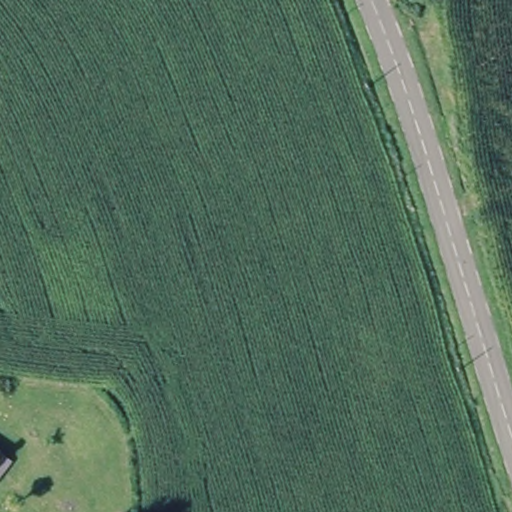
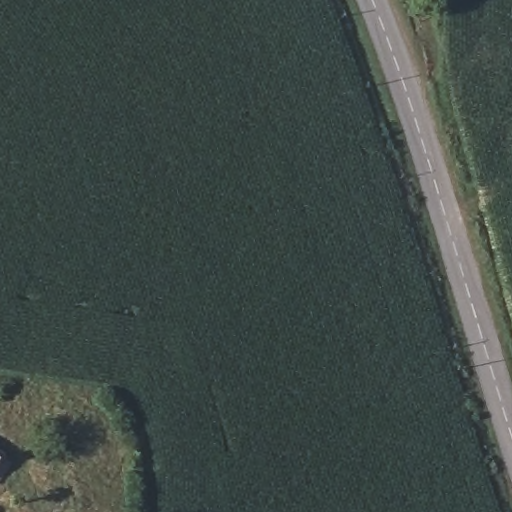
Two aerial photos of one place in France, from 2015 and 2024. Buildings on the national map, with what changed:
unchanged [(0,473),(0,452),(10,459),(0,473)]

